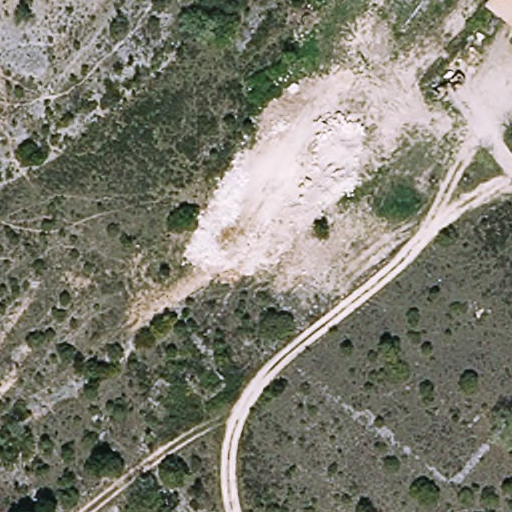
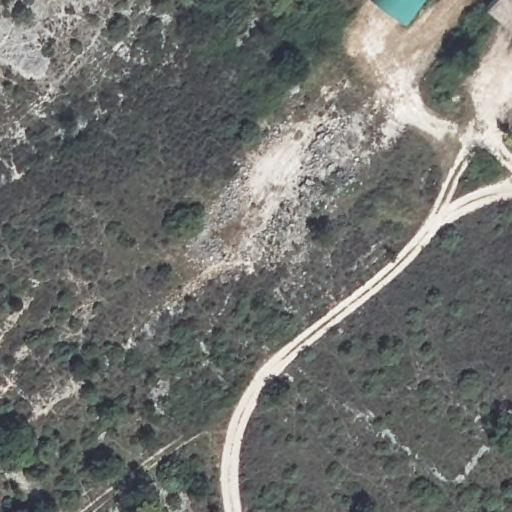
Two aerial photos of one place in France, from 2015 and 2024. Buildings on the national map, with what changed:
new [(374,0),(424,0),(405,25),(374,0)]
unchanged [(486,8),(493,0),(512,0),(512,30),(486,8)]

